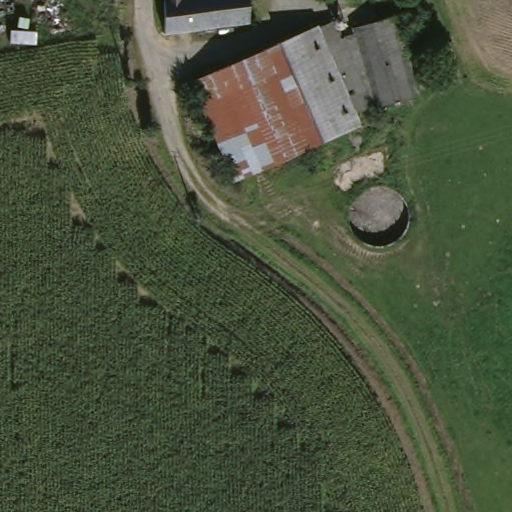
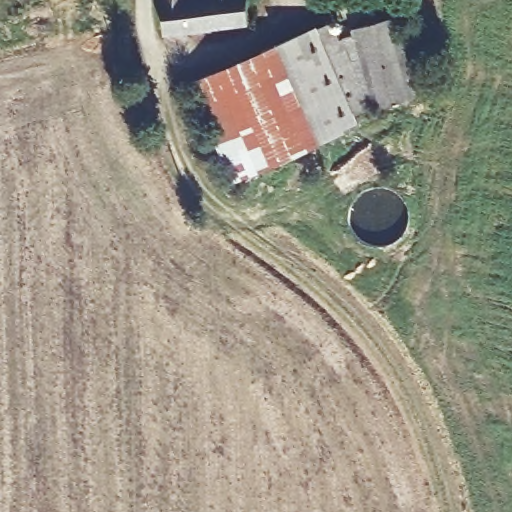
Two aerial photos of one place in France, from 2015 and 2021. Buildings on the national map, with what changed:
unchanged [(185,0),(244,0),(243,27),(192,34),(159,38),(159,0),(185,0)]
unchanged [(417,99),(376,111),(353,33),(394,21),(417,99)]
unchanged [(330,25),(340,47),(325,53),(352,116),(357,129),(358,130),(317,146),(275,48),(330,25)]
unchanged [(367,111),(352,116),(325,53),(340,47),(367,111)]
unchanged [(230,184),(186,87),(275,48),(317,146),(230,184)]

